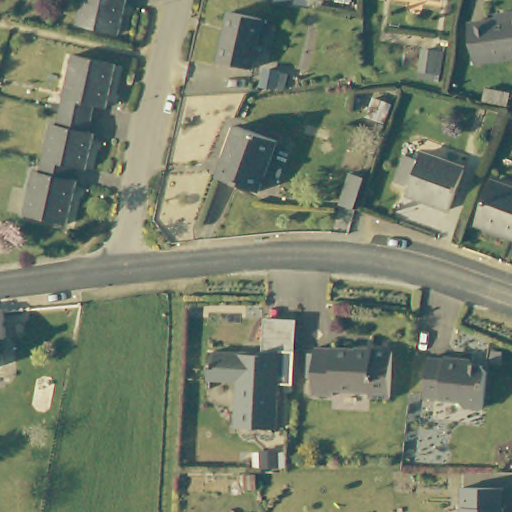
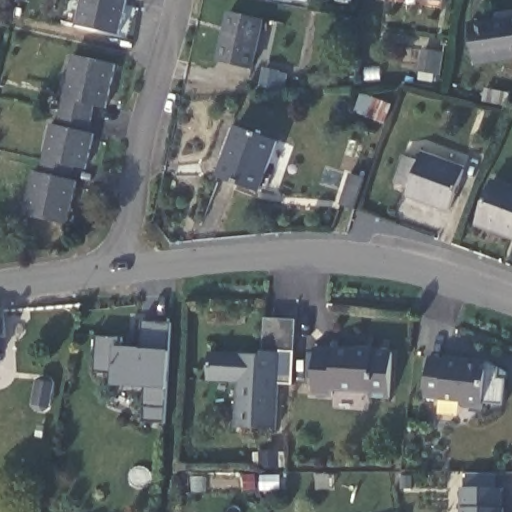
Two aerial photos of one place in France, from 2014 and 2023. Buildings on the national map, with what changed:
unchanged [(120,33),(75,25),(79,0),(127,0),(120,33)]
unchanged [(301,4),(280,0),(302,0),(301,4)]
unchanged [(261,15),(248,66),(216,58),(228,6),(261,15)]
unchanged [(473,68),(465,27),(494,21),(493,14),(512,10),(512,60),(473,68)]
unchanged [(358,14),(357,34),(342,30),(343,11),(358,14)]
unchanged [(65,57),(108,65),(100,109),(88,107),(85,121),(54,113),(65,57)]
unchanged [(365,120),(368,115),(352,112),(356,90),(395,91),(388,124),(365,120)]
unchanged [(83,134),(89,135),(80,171),(69,168),(38,162),(46,127),(52,127),(54,113),(85,121),(83,134)]
unchanged [(233,122),(277,137),(257,191),(216,177),(233,122)]
unchanged [(397,183),(406,158),(420,162),(422,156),(465,169),(451,209),(407,197),(411,187),(397,183)]
unchanged [(69,168),(66,182),(71,182),(62,226),(19,217),(28,173),(34,175),(38,162),(69,168)]
unchanged [(341,202),(352,172),(366,176),(355,207),(341,202)]
unchanged [(478,224),(492,177),(512,184),(512,234),(478,224)]
unchanged [(4,333),(0,334),(1,346),(0,346),(0,307),(4,333)]
new [(142,388),(111,386),(111,374),(95,373),(97,337),(122,338),(120,347),(141,348),(143,323),(170,324),(169,352),(167,391),(165,424),(143,423),(142,388)]
unchanged [(263,353),(263,348),(280,350),(277,427),(236,425),(238,379),(208,378),(209,351),(263,353)]
unchanged [(393,353),(392,400),(371,400),(371,393),(333,392),(333,397),(314,397),(316,350),(393,353)]
unchanged [(447,360),(447,358),(467,360),(467,365),(484,366),(489,372),(485,410),(467,407),(462,402),(427,398),(431,358),(447,360)]
new [(39,380),(44,377),(52,378),(55,383),(50,408),(44,412),(36,410),(33,404),(39,380)]
unchanged [(258,470),(257,451),(276,452),(277,471),(258,470)]
unchanged [(505,510),(506,510),(507,512),(460,512),(460,490),(505,489),(505,510)]

